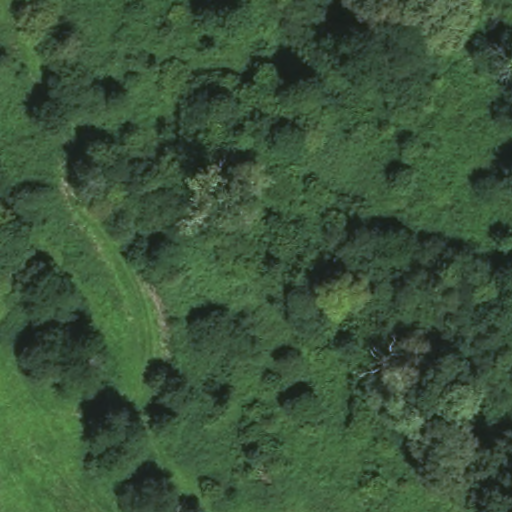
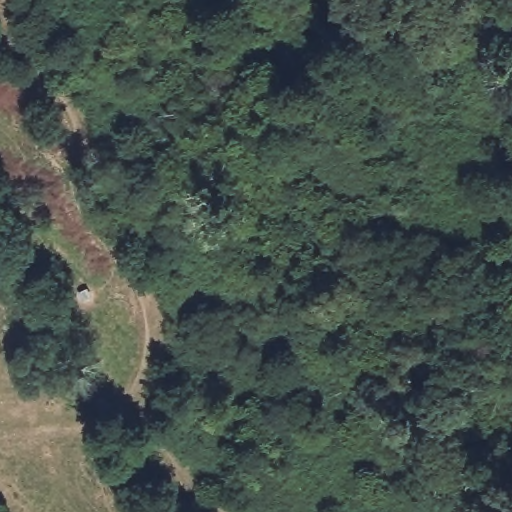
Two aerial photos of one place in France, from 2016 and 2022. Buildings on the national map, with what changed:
[]

